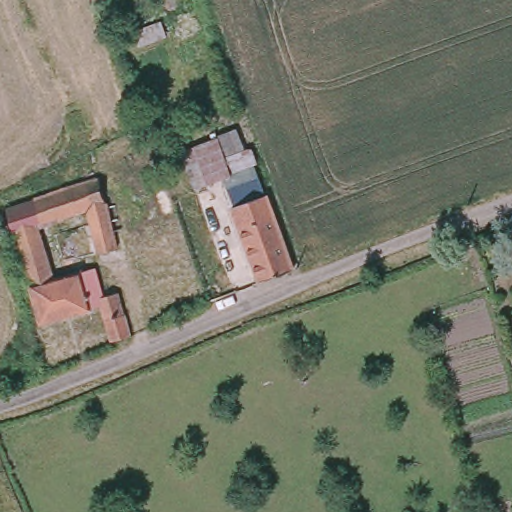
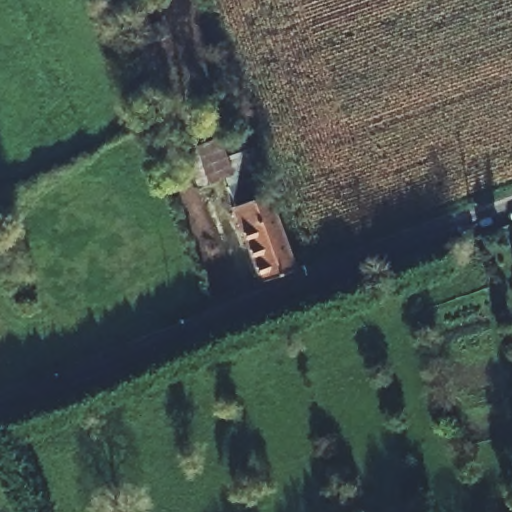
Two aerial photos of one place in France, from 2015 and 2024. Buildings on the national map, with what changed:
unchanged [(220,155),(211,129),(231,121),(241,147),(220,155)]
demolished [(110,342),(100,311),(36,331),(8,210),(99,175),(106,202),(85,210),(44,226),(58,286),(83,278),(85,285),(114,276),(132,333),(110,342)]
unchanged [(264,288),(233,207),(266,195),(296,273),(264,288)]

